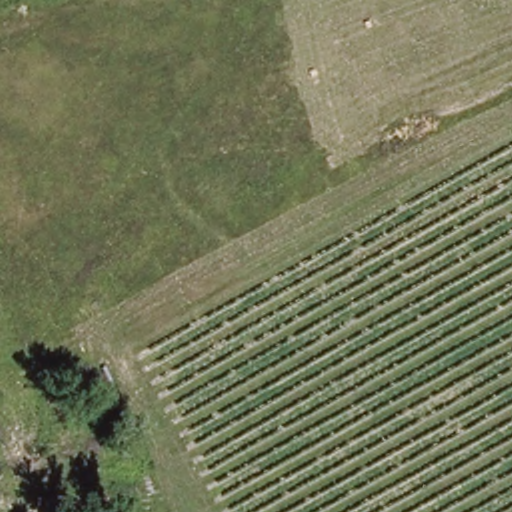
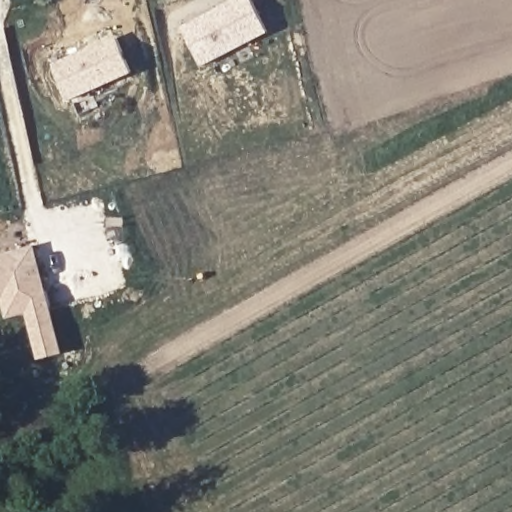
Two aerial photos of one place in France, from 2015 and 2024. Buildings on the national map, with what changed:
new [(182,29),(239,0),(252,0),(271,34),(203,69),(182,29)]
new [(70,103),(53,65),(117,37),(134,76),(70,103)]
new [(37,248),(64,356),(41,362),(29,316),(9,322),(5,302),(0,304),(0,257),(37,248)]

